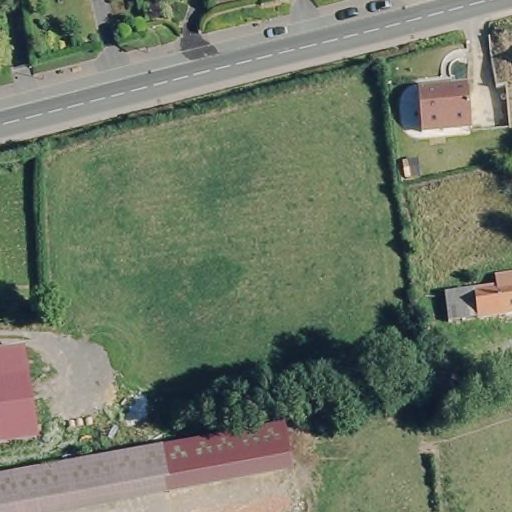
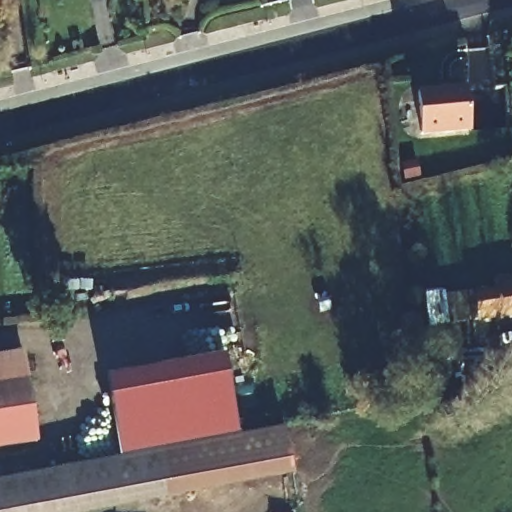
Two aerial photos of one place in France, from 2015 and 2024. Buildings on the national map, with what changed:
unchanged [(477,127),(427,132),(423,91),(473,87),(477,127)]
unchanged [(447,323),(444,297),(474,293),(496,290),(495,279),(512,276),(512,314),(477,319),(447,323)]
unchanged [(27,354),(40,433),(0,438),(0,357),(27,354)]
new [(104,375),(224,355),(239,437),(168,449),(167,445),(122,453),(119,454),(104,375)]
unchanged [(285,429),(295,477),(175,493),(168,449),(285,429)]
unchanged [(133,500),(67,512),(0,512),(0,475),(122,453),(167,445),(175,493),(133,500)]

